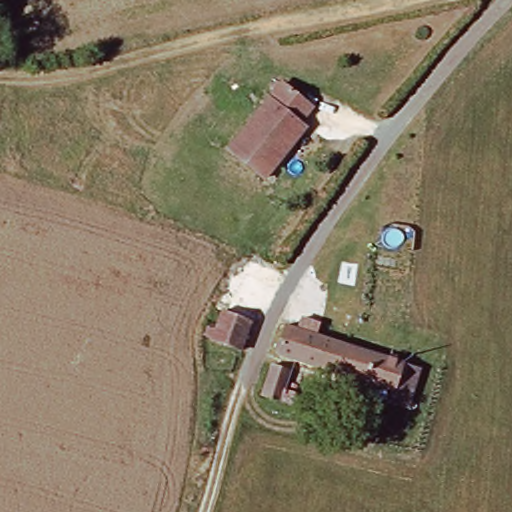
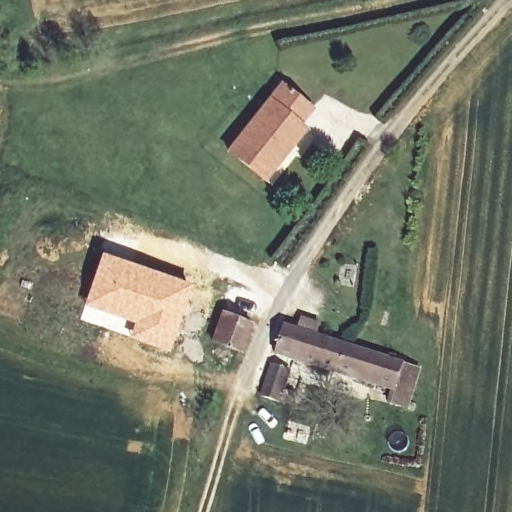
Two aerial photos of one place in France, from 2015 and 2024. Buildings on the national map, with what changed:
unchanged [(309,128),(268,181),(233,154),(289,82),(319,104),(304,124),(309,128)]
new [(99,251),(192,283),(169,350),(125,335),(77,318),(81,305),(99,251)]
unchanged [(225,337),(235,307),(262,316),(252,346),(225,337)]
unchanged [(414,408),(399,403),(403,391),(287,354),(295,328),(426,369),(414,408)]
unchanged [(302,396),(300,404),(273,398),(280,368),(297,372),(292,393),(302,396)]

